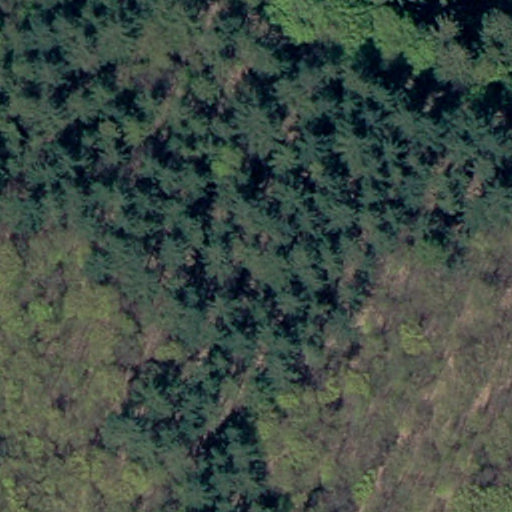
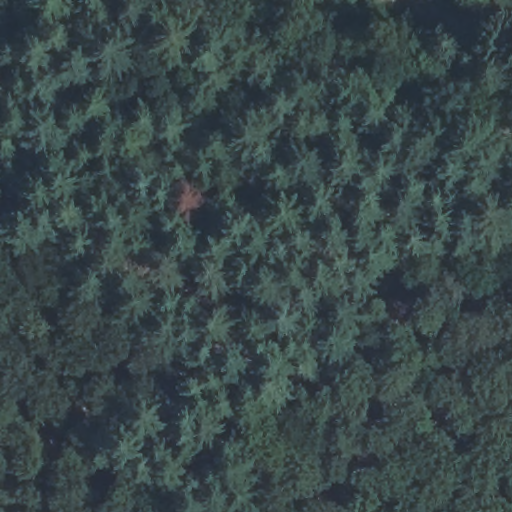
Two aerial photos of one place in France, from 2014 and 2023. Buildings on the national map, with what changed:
[]

